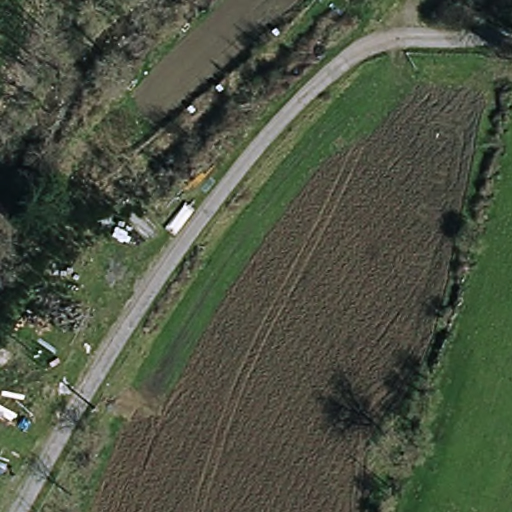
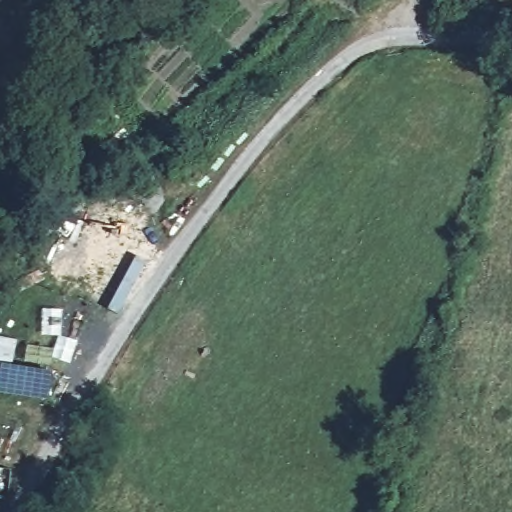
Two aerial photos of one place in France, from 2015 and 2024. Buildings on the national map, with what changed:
new [(48,400),(0,393),(0,365),(51,372),(48,400)]

